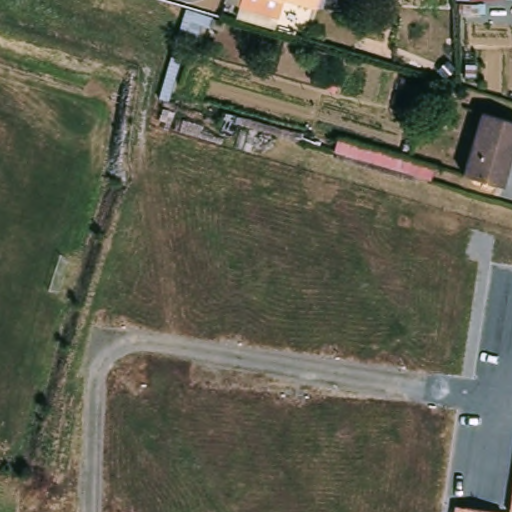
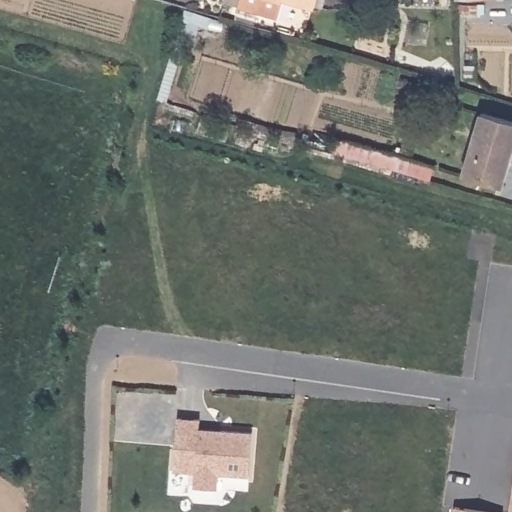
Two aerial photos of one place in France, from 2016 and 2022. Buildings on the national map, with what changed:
unchanged [(268,0),(282,0),(280,5),(268,0)]
unchanged [(297,0),(313,0),(312,5),(297,0)]
unchanged [(465,76),(456,85),(449,78),(458,69),(465,76)]
unchanged [(482,112),(512,121),(512,167),(506,187),(466,176),(482,112)]
unchanged [(339,155),(343,140),(438,168),(434,182),(339,155)]
new [(177,417),(199,419),(199,428),(251,433),(248,478),(218,475),(217,489),(193,487),(194,473),(172,471),(177,417)]
unchanged [(512,496),(512,512),(510,512),(512,496)]
unchanged [(455,508),(486,512),(454,512),(455,508)]

